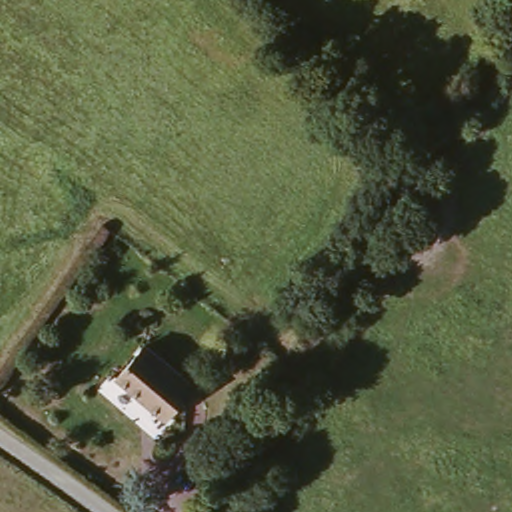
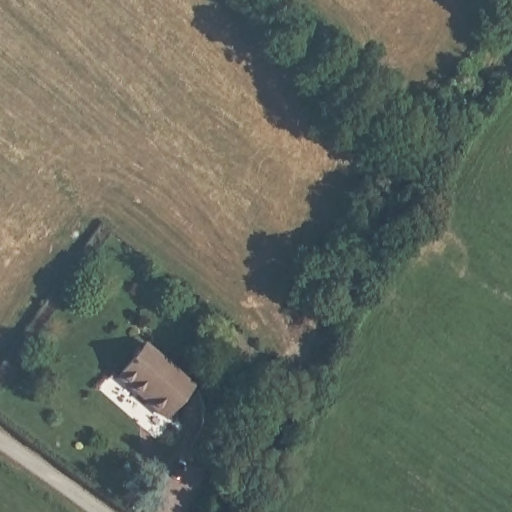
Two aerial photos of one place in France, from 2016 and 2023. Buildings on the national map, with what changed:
unchanged [(167,412),(149,399),(145,402),(114,378),(142,342),(192,381),(167,412)]

